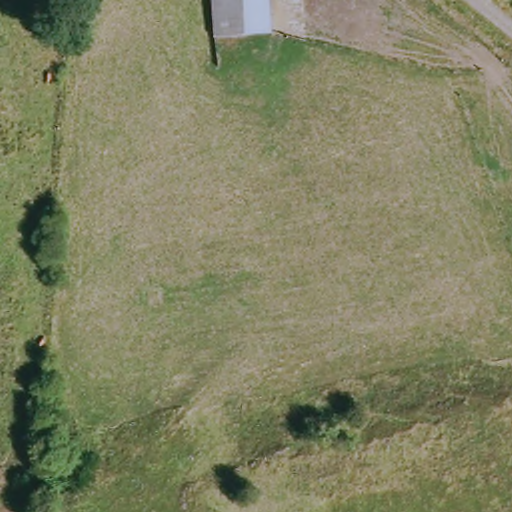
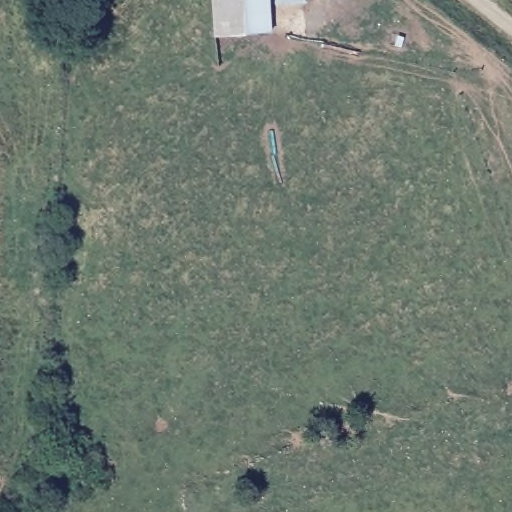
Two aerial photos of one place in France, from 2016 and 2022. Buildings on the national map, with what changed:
unchanged [(264,26),(209,30),(207,0),(263,0),(264,26)]

